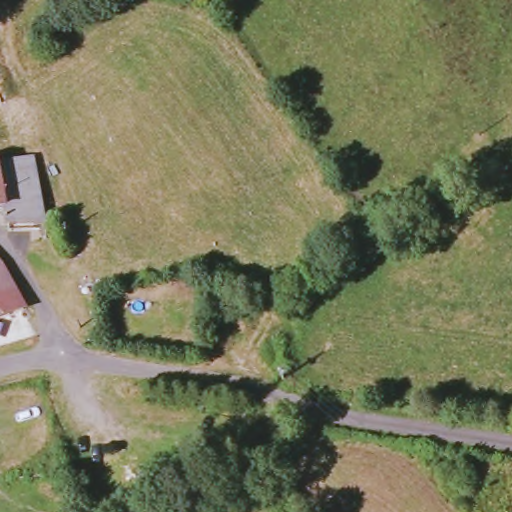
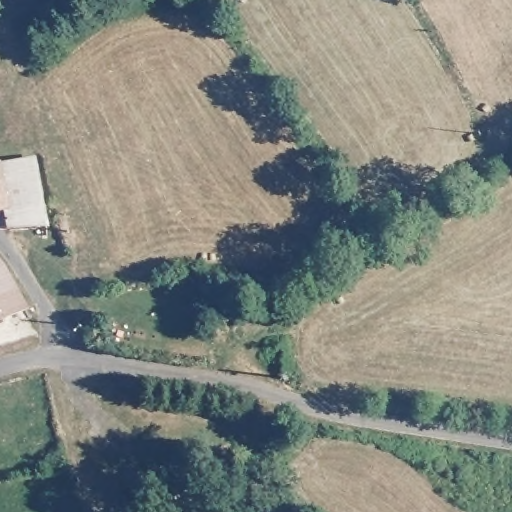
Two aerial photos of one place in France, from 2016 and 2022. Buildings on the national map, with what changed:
unchanged [(25,160),(36,216),(0,223),(0,166),(25,160)]
unchanged [(0,266),(25,306),(0,318),(0,265),(0,266)]

